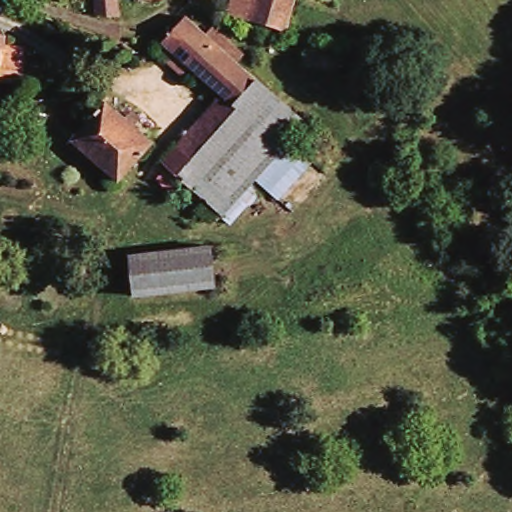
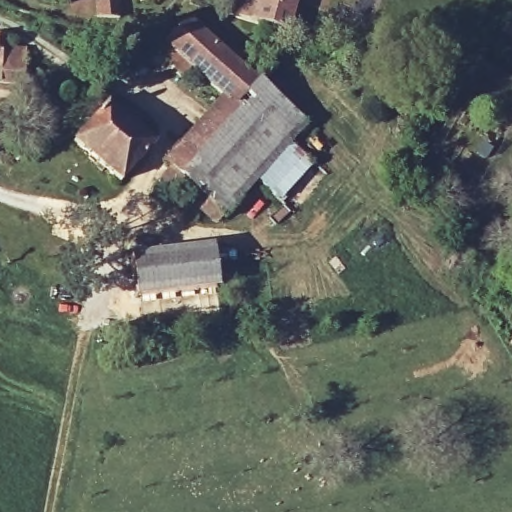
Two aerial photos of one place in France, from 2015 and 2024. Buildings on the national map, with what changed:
unchanged [(93,17),(90,0),(114,0),(115,16),(111,20),(93,17)]
unchanged [(137,0),(144,0),(138,2),(137,0)]
unchanged [(248,0),(242,20),(223,13),(227,0),(248,0)]
unchanged [(242,20),(248,0),(291,0),(281,32),(242,20)]
unchanged [(251,120),(221,96),(159,42),(182,15),(196,26),(258,86),(298,124),(286,138),(219,215),(161,161),(172,149),(203,177),(251,120)]
unchanged [(305,63),(308,44),(345,51),(341,70),(305,63)]
unchanged [(0,84),(0,47),(17,48),(14,85),(0,84)]
unchanged [(172,149),(221,96),(251,120),(203,177),(172,149)]
unchanged [(100,102),(145,142),(110,182),(65,141),(100,102)]
unchanged [(286,138),(314,162),(278,202),(265,192),(232,228),(219,215),(286,138)]
unchanged [(206,245),(211,284),(129,293),(125,254),(206,245)]

